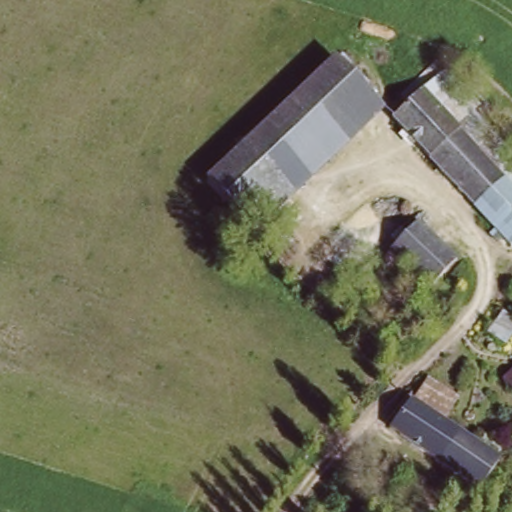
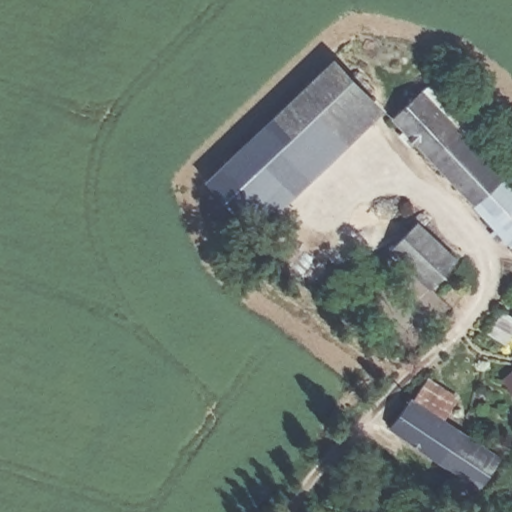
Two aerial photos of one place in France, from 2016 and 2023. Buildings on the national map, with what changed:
unchanged [(259,235),(211,183),(332,57),(382,112),(259,235)]
unchanged [(446,70),(482,110),(478,113),(460,130),(424,91),(446,70)]
unchanged [(460,130),(512,186),(512,248),(392,120),(424,91),(460,130)]
unchanged [(512,150),(512,186),(460,130),(478,113),(512,150)]
unchanged [(417,223),(458,264),(433,287),(392,249),(417,223)]
unchanged [(512,317),(512,342),(507,350),(486,335),(503,312),(512,317)]
unchanged [(433,375),(460,394),(444,413),(502,455),(481,486),(392,425),(415,393),(433,375)]
unchanged [(512,393),(505,387),(512,378),(512,393)]

